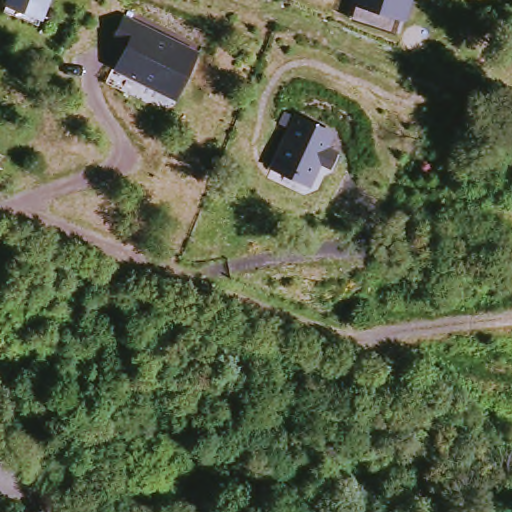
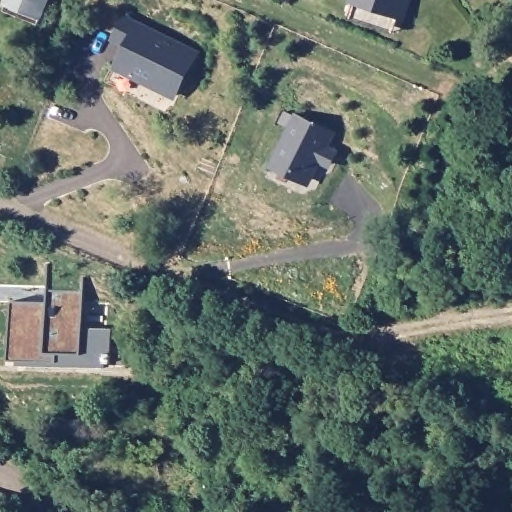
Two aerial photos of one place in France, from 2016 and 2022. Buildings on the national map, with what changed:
unchanged [(38,18),(5,4),(7,0),(46,0),(38,18)]
unchanged [(391,22),(342,0),(401,0),(391,22)]
unchanged [(180,97),(125,68),(136,45),(122,39),(132,19),(146,26),(201,54),(180,97)]
unchanged [(317,156),(327,160),(321,173),(311,168),(305,184),(271,169),(291,126),(325,141),(317,156)]
new [(10,303),(39,304),(46,303),(46,292),(83,291),(81,361),(9,362),(10,303)]

